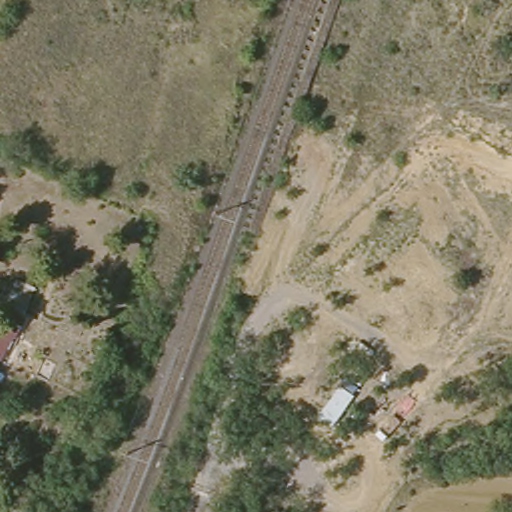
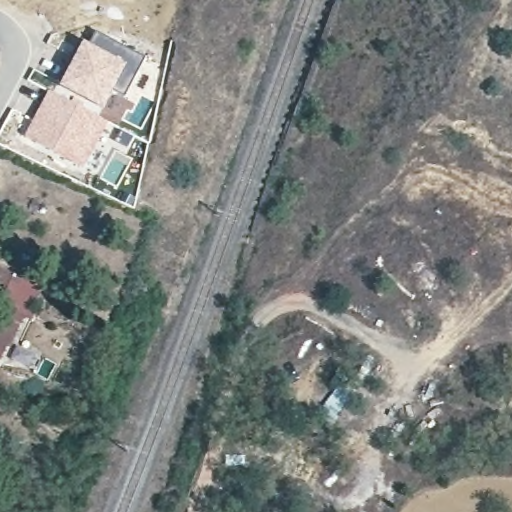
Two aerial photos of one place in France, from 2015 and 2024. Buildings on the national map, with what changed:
new [(82,40),(88,43),(127,64),(112,93),(100,115),(81,103),(75,99),(57,87),(82,40)]
new [(107,122),(83,169),(25,137),(51,91),(107,122)]
unchanged [(16,274),(37,283),(16,333),(13,332),(2,357),(0,356),(0,308),(2,303),(16,274)]

